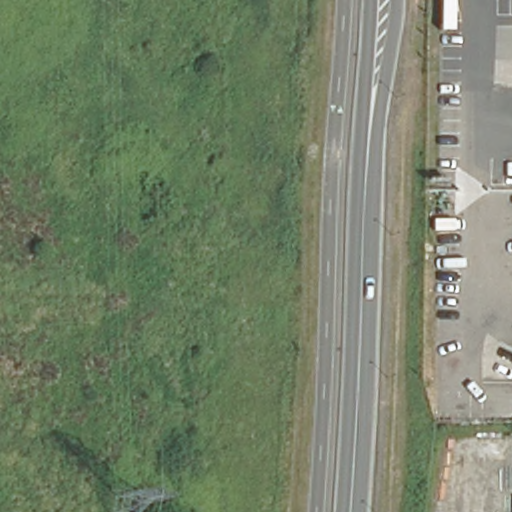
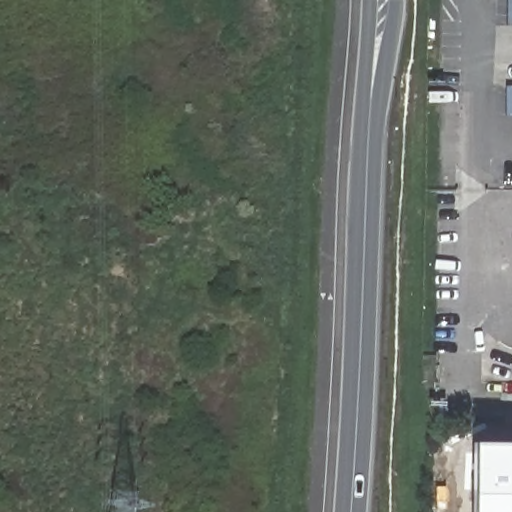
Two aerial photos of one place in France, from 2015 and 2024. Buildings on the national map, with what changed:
new [(507,0),(512,0),(512,26),(507,26),(507,0)]
new [(512,442),(512,512),(472,512),(471,442),(512,442)]

